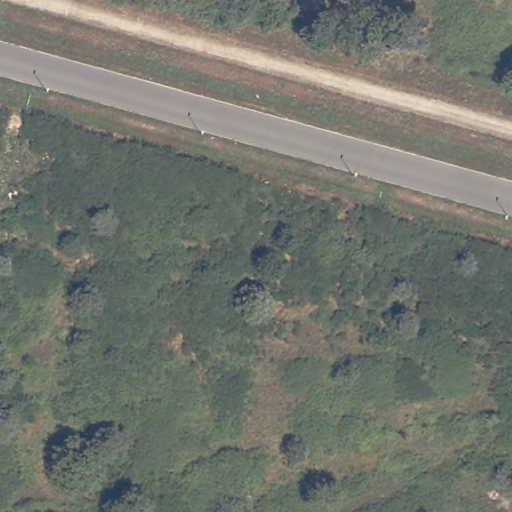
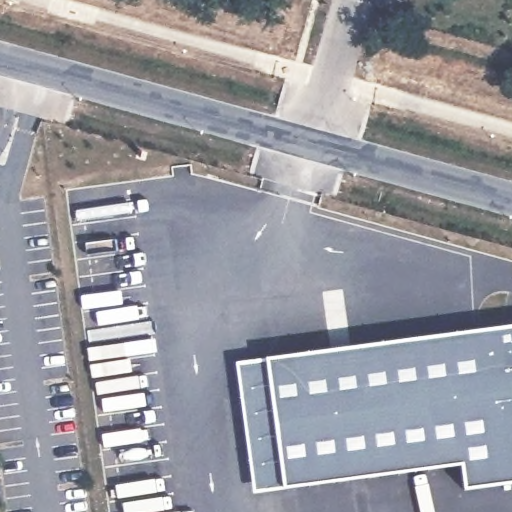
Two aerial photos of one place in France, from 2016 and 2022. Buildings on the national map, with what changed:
new [(463,490),(460,466),(282,490),(252,493),(235,363),(265,358),(512,326),(512,484),(463,490)]

